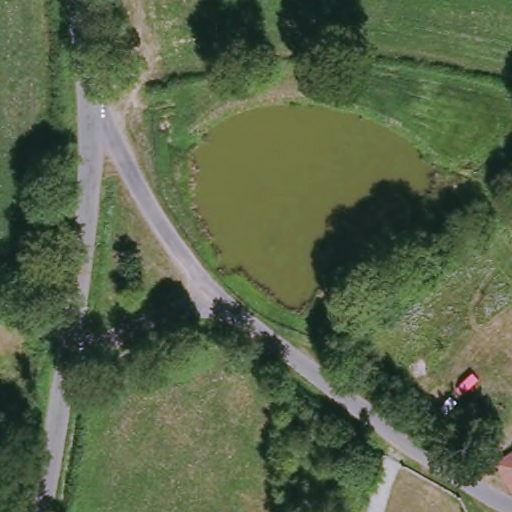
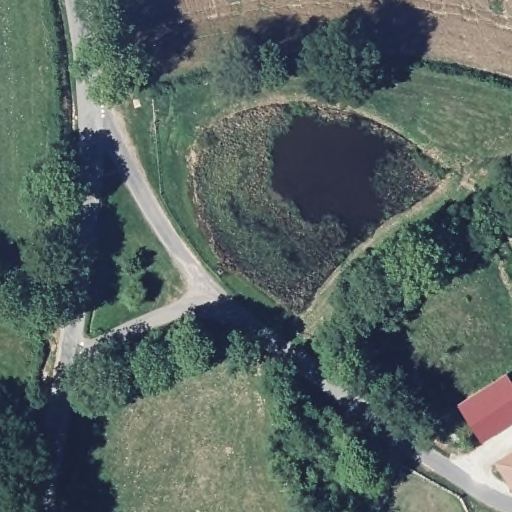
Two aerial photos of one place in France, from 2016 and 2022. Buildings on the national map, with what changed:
new [(512,382),(512,422),(482,440),(458,403),(507,374),(512,382)]
unchanged [(500,466),(512,457),(512,485),(500,466)]

